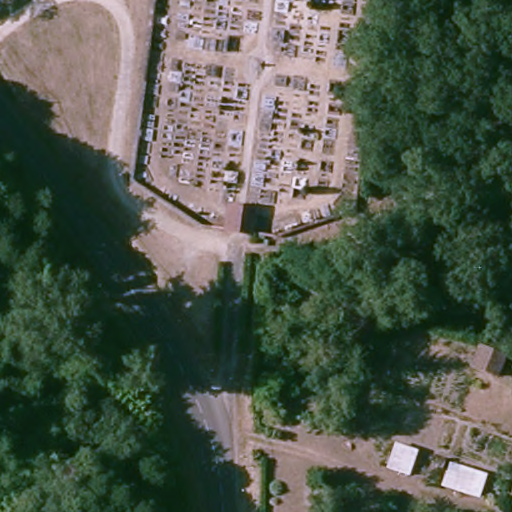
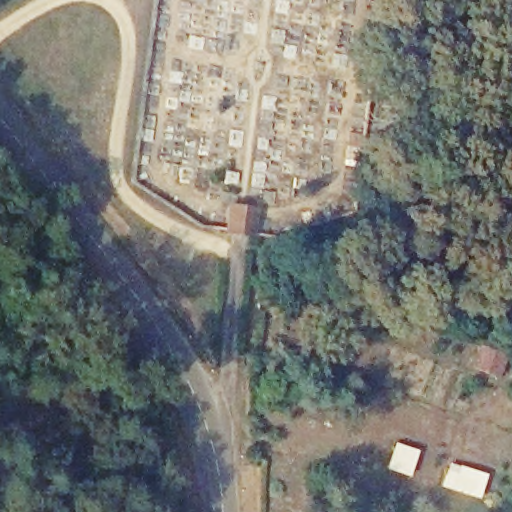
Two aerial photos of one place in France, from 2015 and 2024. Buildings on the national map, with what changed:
unchanged [(227,233),(227,223),(227,208),(256,209),(256,222),(256,233),(227,233)]

